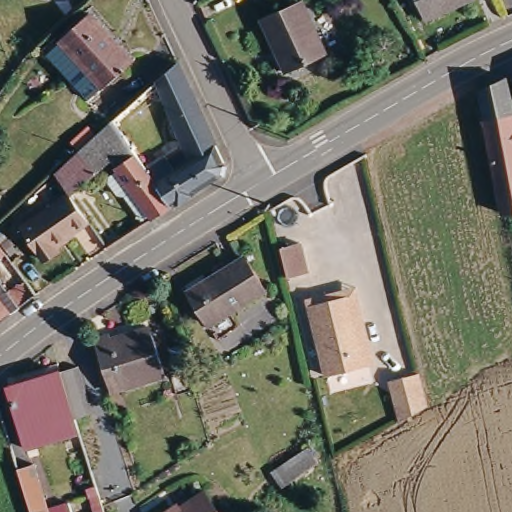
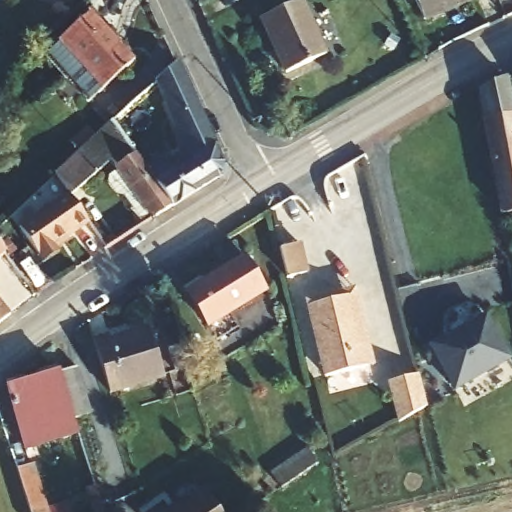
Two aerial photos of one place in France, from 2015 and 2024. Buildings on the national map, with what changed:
unchanged [(321,56),(287,69),(261,11),(285,0),(303,0),(328,53),(321,56)]
unchanged [(412,0),(467,0),(422,21),(412,0)]
unchanged [(99,89),(84,101),(63,74),(44,52),(58,40),(89,14),(109,37),(131,62),(99,89)]
unchanged [(176,62),(211,142),(186,161),(161,111),(150,90),(149,87),(176,62)]
unchanged [(510,74),(512,85),(512,210),(503,211),(482,86),(510,74)]
unchanged [(104,132),(119,149),(141,172),(154,164),(163,176),(186,161),(211,142),(220,161),(218,176),(170,207),(151,220),(103,165),(70,195),(66,188),(55,174),(103,130),(104,132)]
unchanged [(55,245),(58,248),(43,258),(18,222),(66,188),(70,195),(84,214),(89,222),(55,245)]
unchanged [(301,244),(306,264),(286,268),(281,247),(301,244)]
unchanged [(0,256),(0,247),(4,252),(0,256)]
unchanged [(246,249),(268,279),(210,329),(185,298),(246,249)]
demolished [(24,280),(35,296),(16,310),(7,293),(24,280)]
unchanged [(356,293),(371,367),(326,374),(309,302),(356,293)]
unchanged [(0,323),(0,300),(9,316),(0,323)]
new [(450,330),(452,333),(459,329),(458,327),(488,308),(512,347),(512,350),(460,382),(434,340),(450,330)]
unchanged [(103,333),(107,344),(129,337),(127,332),(151,325),(164,377),(110,395),(90,338),(103,333)]
unchanged [(181,344),(190,371),(178,375),(168,348),(181,344)]
unchanged [(73,368),(88,417),(69,422),(54,374),(73,368)]
unchanged [(54,374),(69,422),(74,435),(23,449),(4,389),(54,374)]
unchanged [(419,379),(427,411),(402,418),(391,386),(419,379)]
unchanged [(301,447),(313,463),(289,482),(276,467),(301,447)]
unchanged [(67,512),(24,512),(11,470),(26,465),(43,510),(64,503),(67,512)]
unchanged [(206,492),(221,512),(180,512),(206,492)]

